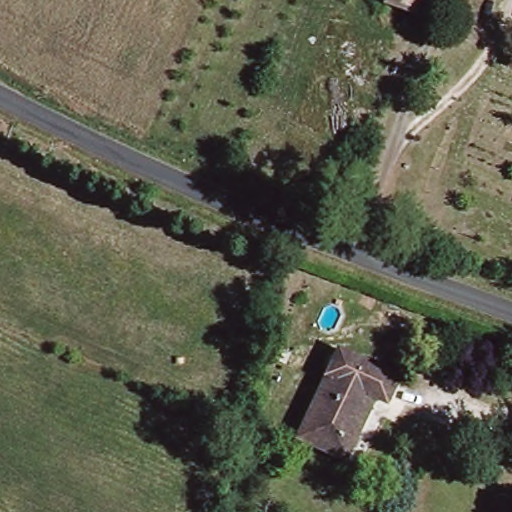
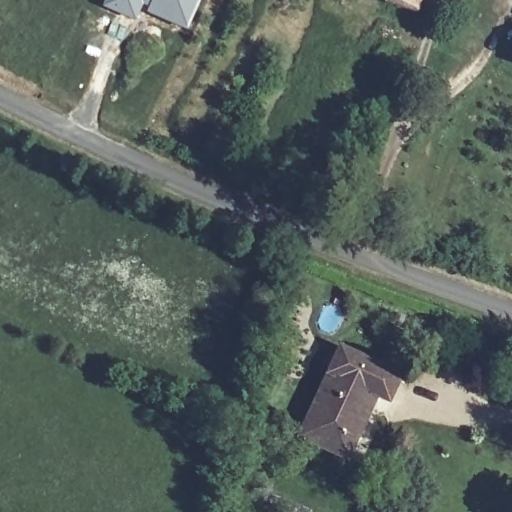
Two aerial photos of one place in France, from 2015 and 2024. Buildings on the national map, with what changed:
new [(201,0),(187,32),(141,12),(136,21),(101,7),(105,0),(201,0)]
unchanged [(382,1),(382,0),(416,0),(412,12),(382,1)]
unchanged [(339,348),(398,375),(386,401),(374,395),(346,457),(299,435),(339,348)]

